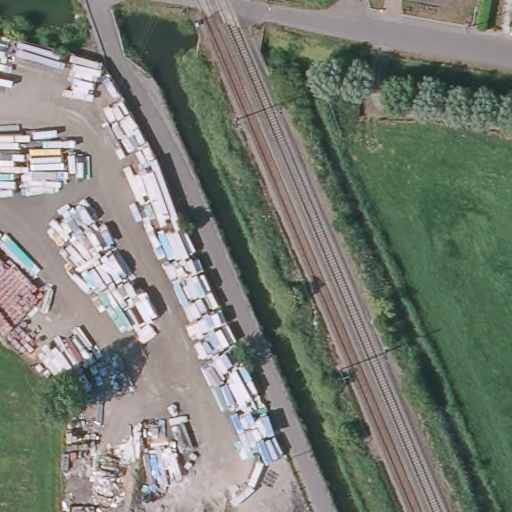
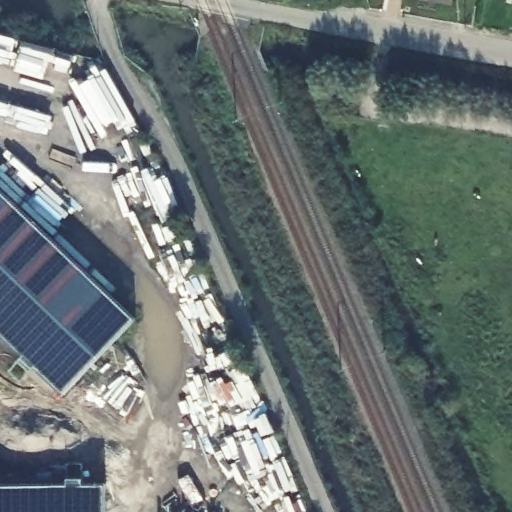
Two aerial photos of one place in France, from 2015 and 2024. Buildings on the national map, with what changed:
unchanged [(452,0),(451,5),(448,4),(422,0),(452,0)]
new [(62,391),(0,333),(0,188),(135,314),(62,391)]
new [(68,477),(83,477),(83,485),(106,485),(106,512),(0,512),(0,486),(68,484),(68,477)]

